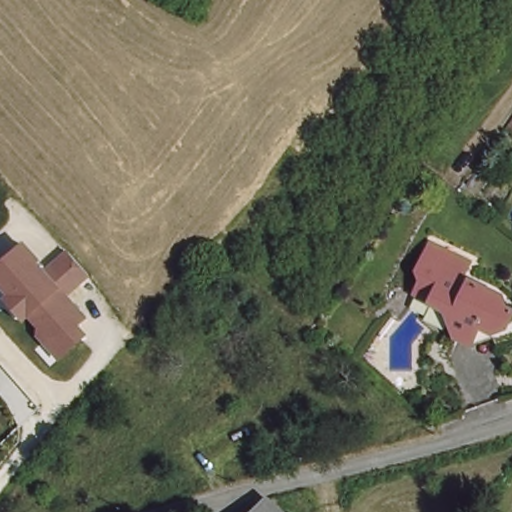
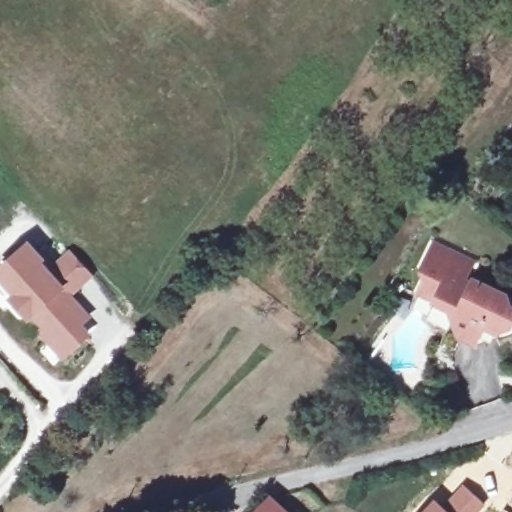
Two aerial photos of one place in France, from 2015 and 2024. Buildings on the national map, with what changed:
unchanged [(463,276),(504,294),(506,309),(503,311),(507,326),(494,332),(481,327),(475,341),(456,333),(452,321),(456,310),(450,307),(448,311),(432,302),(432,299),(415,291),(422,275),(421,262),(432,241),(471,260),(463,276)]
unchanged [(48,270),(70,251),(92,277),(69,299),(91,320),(84,327),(90,337),(62,359),(41,342),(43,335),(32,318),(24,322),(9,303),(14,297),(0,282),(0,269),(28,247),(48,270)]
new [(462,482),(485,504),(478,512),(420,512),(433,498),(442,505),(462,482)]
unchanged [(266,505),(274,512),(259,512),(266,505)]

